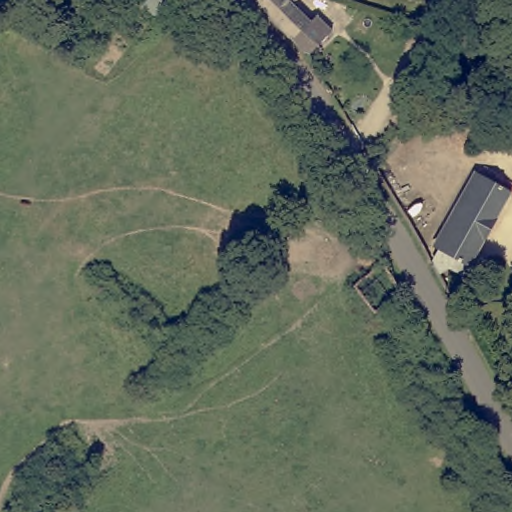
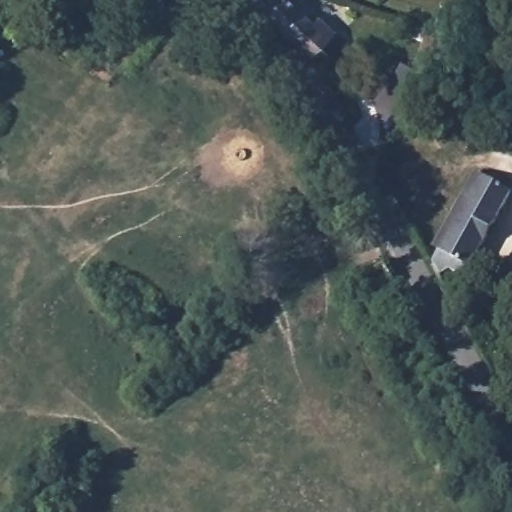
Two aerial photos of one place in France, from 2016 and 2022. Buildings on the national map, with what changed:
unchanged [(302,15),(310,22),(315,18),(330,36),(307,59),(252,0),(296,0),(291,6),(302,15)]
unchanged [(448,0),(462,0),(460,5),(448,1),(448,0)]
unchanged [(425,31),(430,33),(438,7),(453,11),(445,39),(447,40),(432,76),(411,68),(425,31)]
unchanged [(439,250),(436,247),(474,178),(478,172),(510,188),(467,266),(462,263),(454,275),(445,269),(441,275),(432,261),(439,250)]
unchanged [(401,293),(375,310),(353,278),(383,263),(401,293)]

